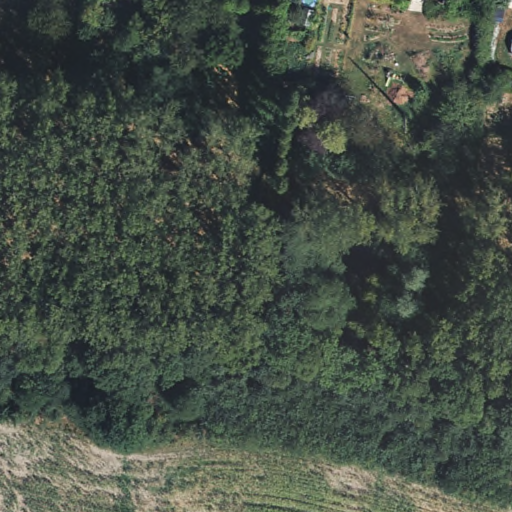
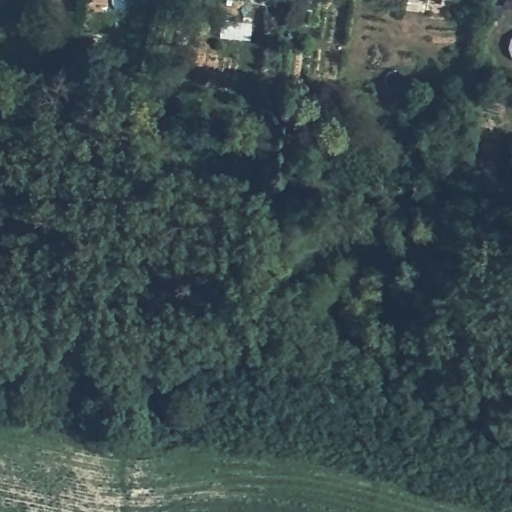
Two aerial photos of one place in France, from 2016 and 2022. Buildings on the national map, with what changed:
unchanged [(450,0),(450,3),(428,0),(450,0)]

